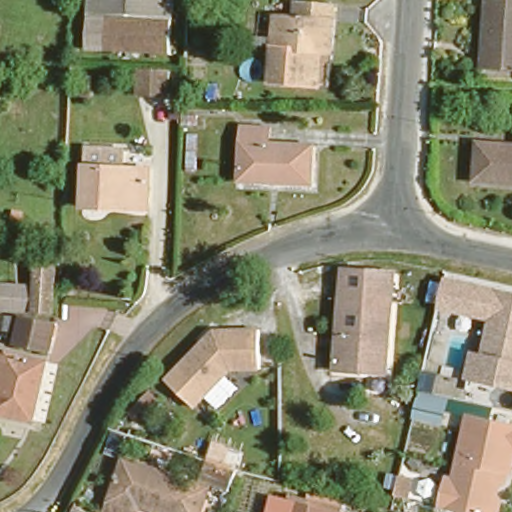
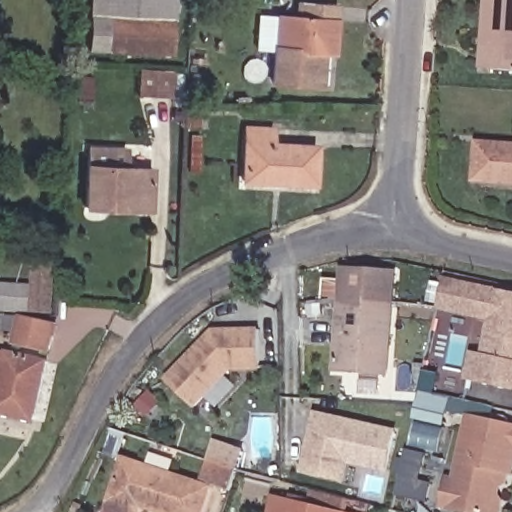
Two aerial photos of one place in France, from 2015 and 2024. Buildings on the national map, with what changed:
unchanged [(85,47),(89,0),(172,0),(172,1),(170,17),(169,17),(161,16),(112,12),(110,49),(85,47)]
unchanged [(277,73),(280,36),(282,4),(292,5),(301,6),(301,0),(342,0),(342,8),(340,39),(329,38),(326,75),(318,75),(277,73)]
unchanged [(487,37),(491,0),(512,0),(512,63),(493,62),(486,62),(487,37)]
unchanged [(161,16),(169,17),(170,17),(167,54),(166,54),(159,53),(110,49),(112,12),(161,16)]
unchanged [(164,99),(156,98),(139,97),(142,67),(158,69),(166,69),(169,69),(167,99),(164,99)]
unchanged [(275,121),(274,136),(329,137),(327,175),(244,173),(246,120),(275,121)]
unchanged [(480,128),(512,130),(512,187),(477,185),(480,128)]
unchanged [(152,160),(150,200),(88,196),(91,156),(152,160)]
unchanged [(41,242),(55,243),(53,294),(39,293),(41,242)]
unchanged [(345,258),(401,266),(395,310),(390,345),(350,339),(355,310),(338,308),(345,258)]
unchanged [(466,379),(472,351),(482,352),(490,322),(439,310),(448,278),(512,292),(512,388),(466,379)]
unchanged [(56,313),(50,338),(11,328),(17,303),(56,313)]
unchanged [(387,363),(331,356),(338,308),(355,310),(350,339),(390,345),(387,363)]
unchanged [(237,372),(199,410),(171,384),(206,349),(211,349),(215,345),(212,343),(220,334),(267,334),(267,372),(237,372)]
unchanged [(0,380),(8,344),(45,353),(32,410),(0,403),(0,380)]
unchanged [(442,399),(438,416),(412,411),(415,393),(442,399)]
new [(315,411),(397,429),(388,473),(349,464),(346,483),(301,473),(315,411)]
unchanged [(453,504),(443,502),(449,475),(456,476),(469,413),(512,421),(512,467),(508,466),(507,478),(498,476),(500,478),(497,494),(503,495),(500,512),(495,512),(493,511),(453,504)]
new [(246,449),(232,492),(214,487),(205,512),(190,512),(192,507),(199,483),(215,439),(246,449)]
unchanged [(102,498),(106,489),(114,461),(199,483),(192,507),(190,512),(173,512),(129,501),(127,505),(126,512),(110,512),(100,509),(102,498)]
unchanged [(412,485),(398,483),(402,463),(416,466),(412,485)]
demolished [(209,480),(212,466),(224,469),(220,483),(209,480)]
unchanged [(278,502),(282,489),(296,492),(348,504),(347,512),(290,512),(292,506),(278,502)]

